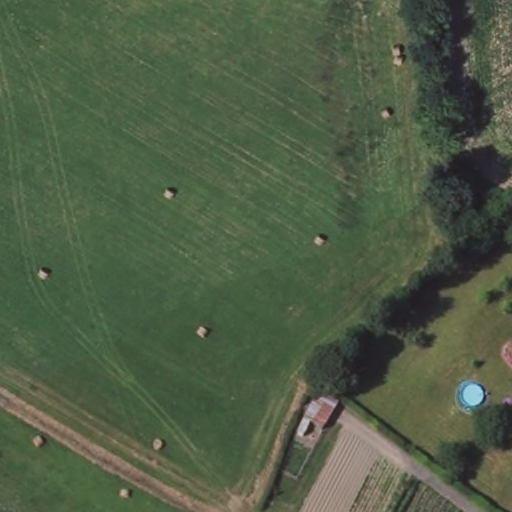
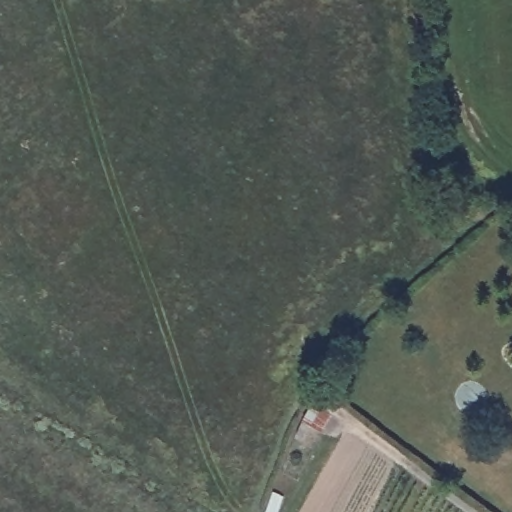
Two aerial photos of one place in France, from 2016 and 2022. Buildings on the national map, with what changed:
[]

